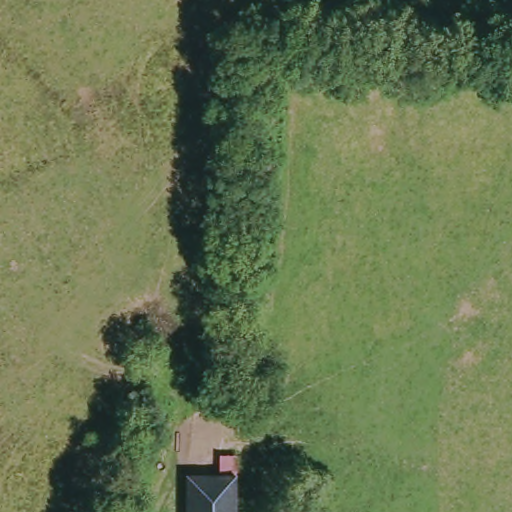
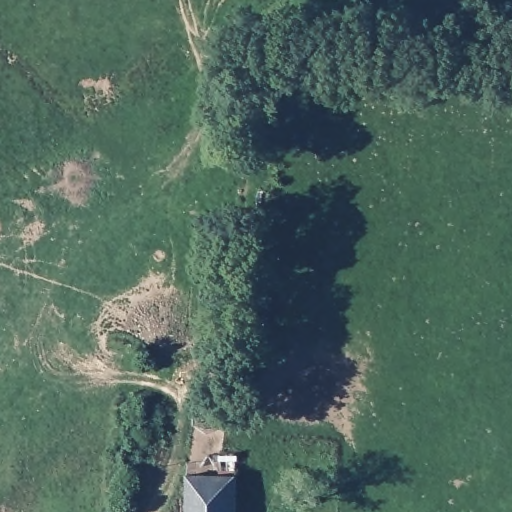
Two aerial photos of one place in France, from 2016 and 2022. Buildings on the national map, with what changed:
unchanged [(187,475),(237,475),(236,512),(187,512),(187,475)]

